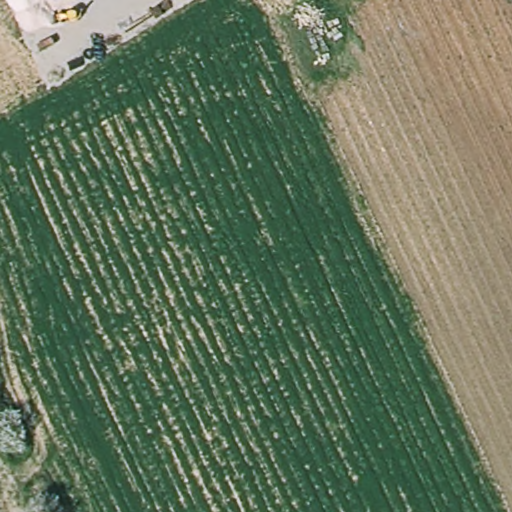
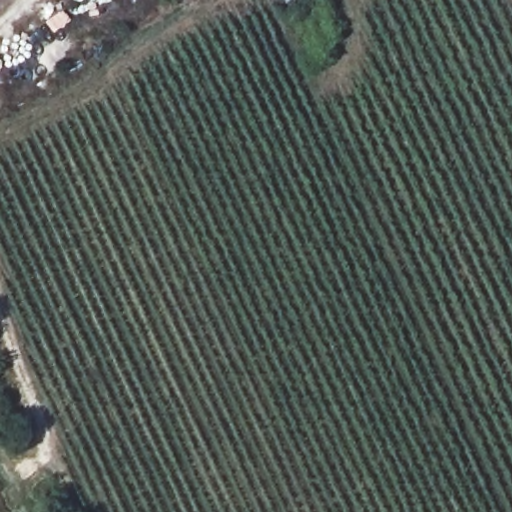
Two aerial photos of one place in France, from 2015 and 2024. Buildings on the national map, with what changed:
[]

